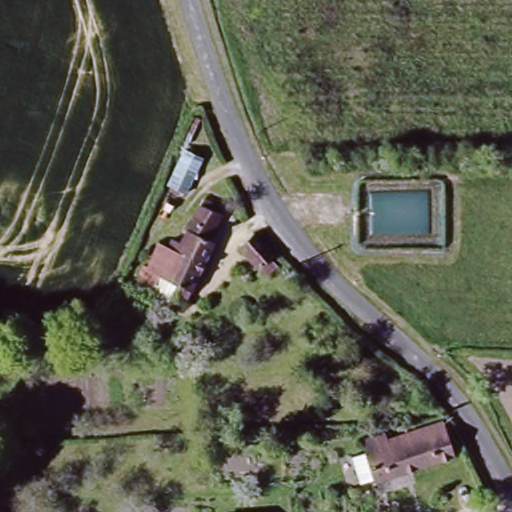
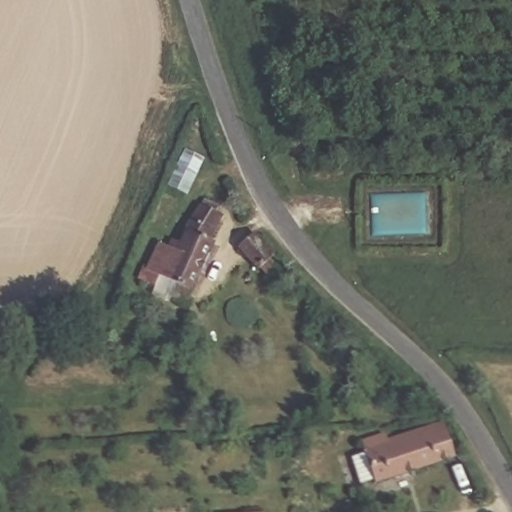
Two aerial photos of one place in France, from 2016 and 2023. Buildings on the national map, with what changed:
unchanged [(165,237),(182,243),(192,216),(208,192),(229,203),(215,232),(220,234),(195,285),(190,287),(167,279),(137,267),(142,254),(157,259),(165,237)]
unchanged [(255,232),(275,253),(282,261),(264,276),(258,270),(236,248),(255,232)]
unchanged [(405,423),(413,421),(415,428),(443,419),(455,455),(419,463),(405,423)]
unchanged [(352,443),(367,438),(365,431),(392,427),(395,435),(400,433),(398,426),(405,423),(419,463),(377,473),(364,474),(352,443)]

